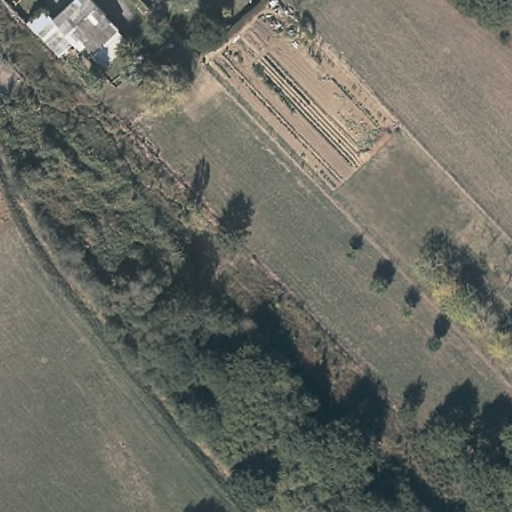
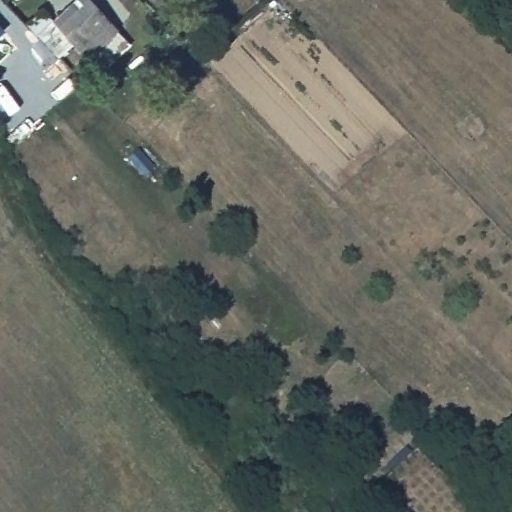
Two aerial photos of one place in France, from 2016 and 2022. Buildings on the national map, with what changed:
unchanged [(48,24),(75,0),(87,0),(117,33),(87,61),(84,63),(69,47),(56,60),(34,36),(48,24)]

